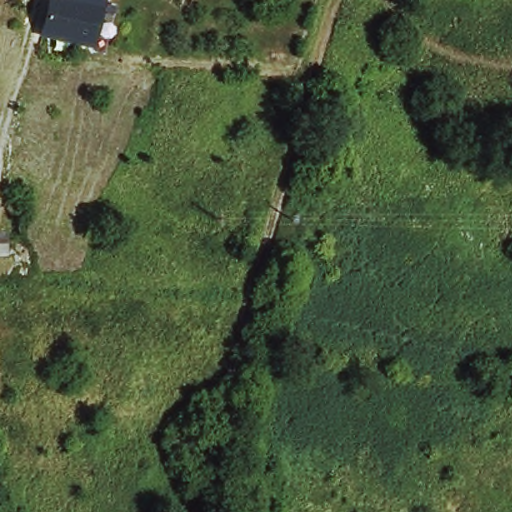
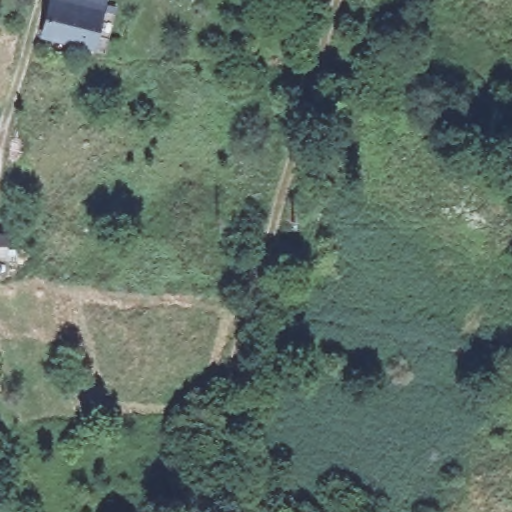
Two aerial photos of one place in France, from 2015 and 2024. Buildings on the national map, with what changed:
unchanged [(75,4),(100,11),(99,17),(91,48),(67,40),(43,34),(52,0),(62,0),(75,4)]
unchanged [(5,246),(3,253),(0,253),(0,238),(5,238),(5,246)]

